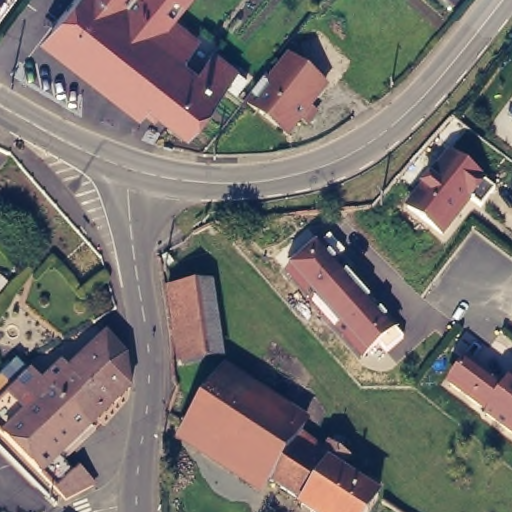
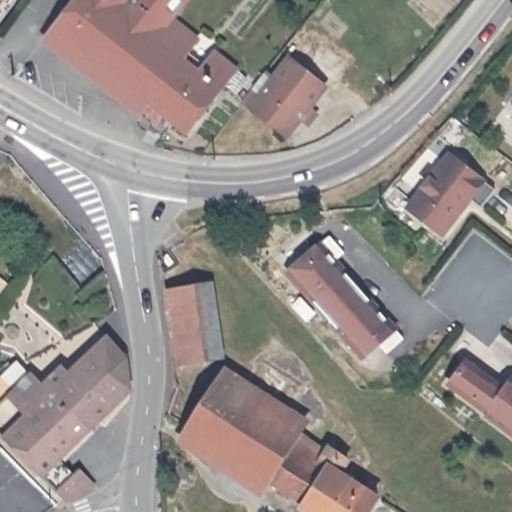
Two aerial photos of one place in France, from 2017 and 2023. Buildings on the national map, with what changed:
unchanged [(175,21),(198,40),(186,55),(196,64),(193,68),(200,73),(215,55),(239,72),(228,87),(189,134),(163,113),(156,120),(146,112),(153,105),(55,29),(78,0),(191,0),(175,21)]
unchanged [(323,29),(261,105),(253,99),(311,20),(323,29)]
unchanged [(356,55),(316,105),(321,110),(313,120),(307,116),(293,132),(261,105),(323,29),(356,55)]
unchanged [(495,187),(481,207),(472,200),(443,236),(403,206),(447,151),(495,187)]
unchanged [(388,353),(381,347),(362,361),(286,271),(329,235),(343,251),(336,259),(404,336),(388,353)]
unchanged [(168,251),(178,246),(183,255),(173,260),(168,251)]
unchanged [(224,359),(177,365),(165,288),(213,281),(224,359)]
unchanged [(49,386),(69,367),(74,373),(113,335),(132,355),(136,387),(69,452),(99,483),(71,498),(0,428),(0,405),(35,371),(49,386)]
unchanged [(35,371),(0,405),(0,382),(23,360),(35,371)]
unchanged [(504,390),(512,379),(512,434),(448,386),(466,361),(504,390)]
unchanged [(274,481),(264,496),(177,436),(223,362),(307,418),(303,427),(328,441),(317,455),(325,461),(301,500),(274,481)]
unchanged [(303,512),(296,507),(301,500),(325,461),(317,455),(328,441),(351,457),(342,470),(379,493),(370,512),(303,512)]

